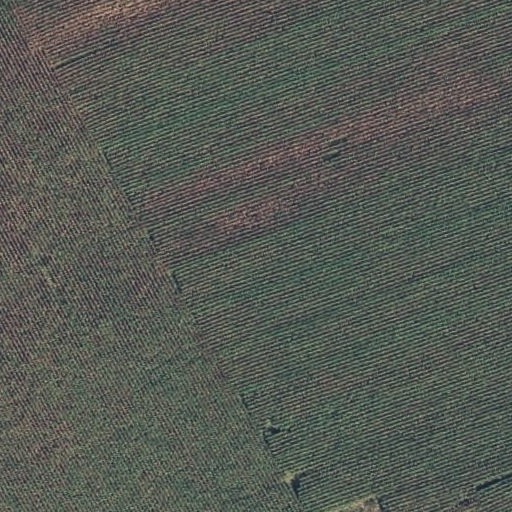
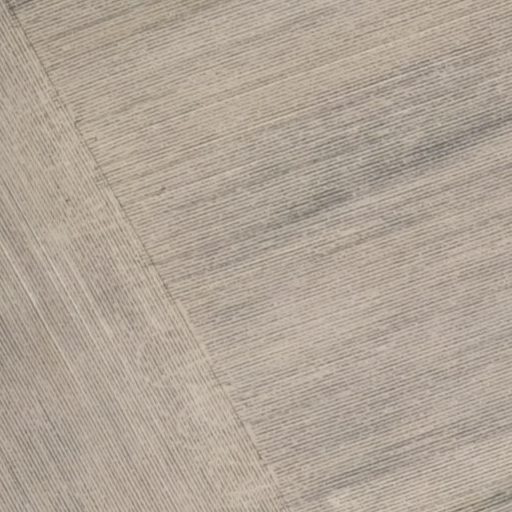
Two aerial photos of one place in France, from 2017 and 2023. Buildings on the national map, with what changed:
[]

